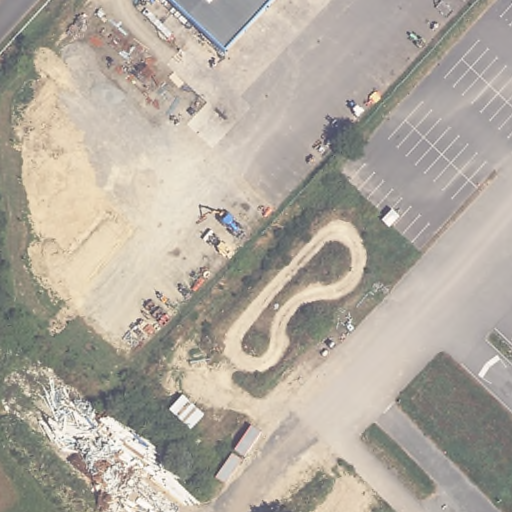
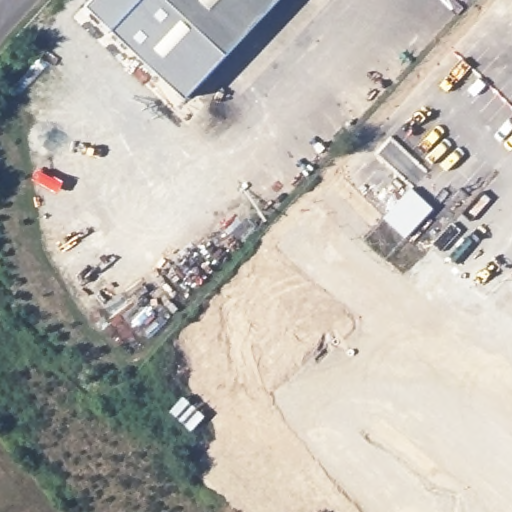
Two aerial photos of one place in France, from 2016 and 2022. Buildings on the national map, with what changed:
new [(110,29),(84,4),(87,0),(136,0),(134,2),(174,40),(191,22),(225,55),(184,97),(110,29)]
unchanged [(191,22),(174,40),(134,2),(136,0),(276,0),(225,55),(191,22)]

